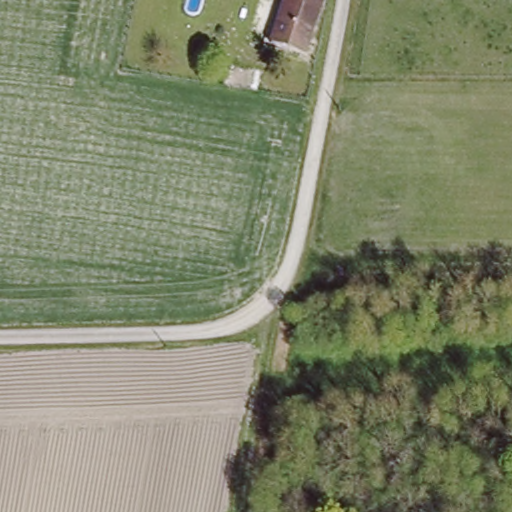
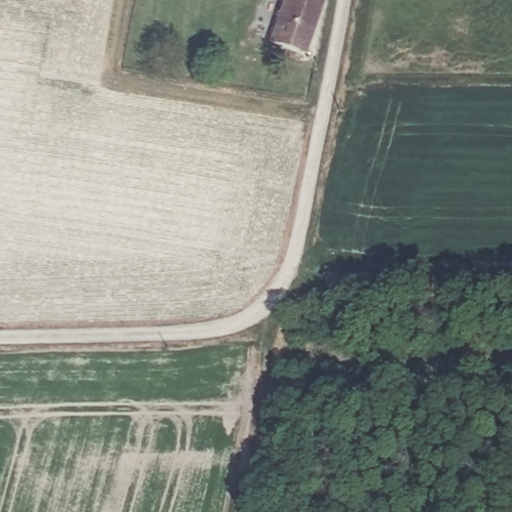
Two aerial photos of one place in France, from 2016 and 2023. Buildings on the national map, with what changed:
unchanged [(270,39),(284,0),(320,0),(302,50),(270,39)]

